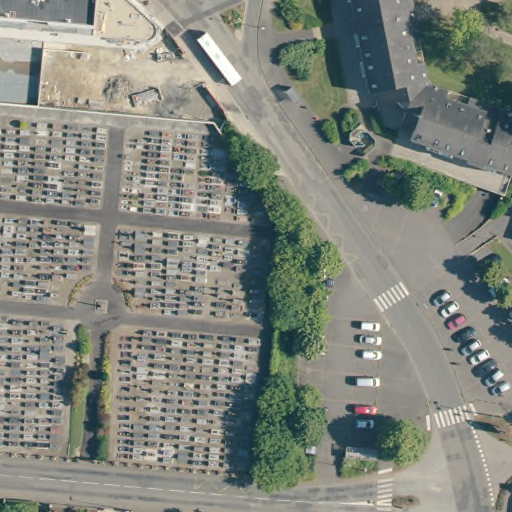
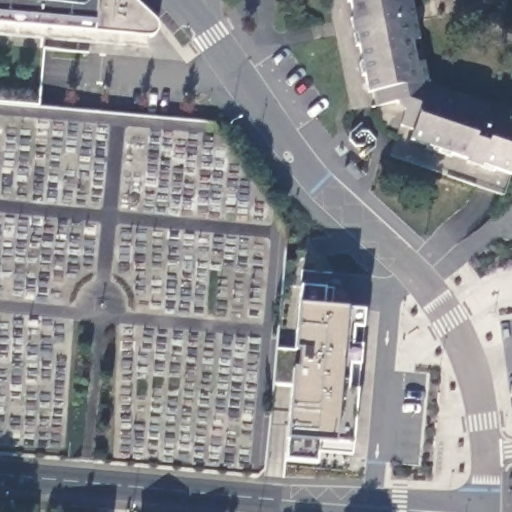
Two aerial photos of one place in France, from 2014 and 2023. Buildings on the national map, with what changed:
unchanged [(156,21),(158,28),(157,33),(155,35),(148,38),(147,48),(0,38),(0,0),(129,0),(156,21)]
unchanged [(375,105),(372,91),(368,91),(364,73),(361,73),(358,60),(361,60),(357,42),(354,42),(350,18),(353,17),(349,0),(412,0),(419,39),(412,40),(416,62),(423,61),(429,81),(446,88),(446,89),(426,94),(394,101),(375,105)]
unchanged [(401,158),(390,154),(402,114),(403,111),(394,101),(426,94),(446,89),(444,96),(467,104),(469,97),(469,96),(499,107),(512,112),(512,169),(503,195),(401,158)]
new [(351,446),(350,459),(316,456),(315,465),(283,461),(286,440),(291,369),(298,369),(299,352),(293,351),(298,303),(300,288),(324,289),(332,290),(330,308),(345,311),(362,312),(351,446)]
unchanged [(266,439),(260,437),(264,398),(270,399),(266,439)]
unchanged [(102,512),(58,512),(58,500),(102,500),(102,512)]

